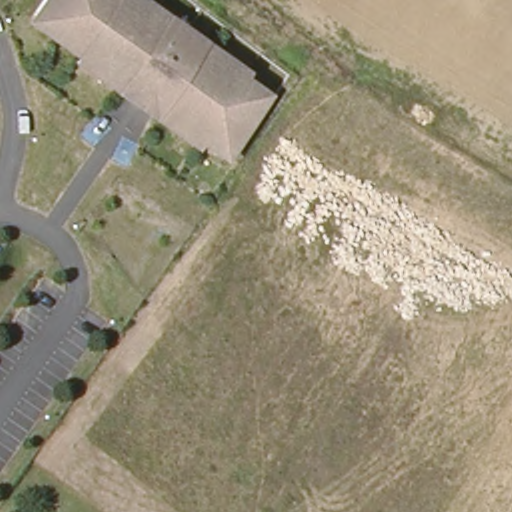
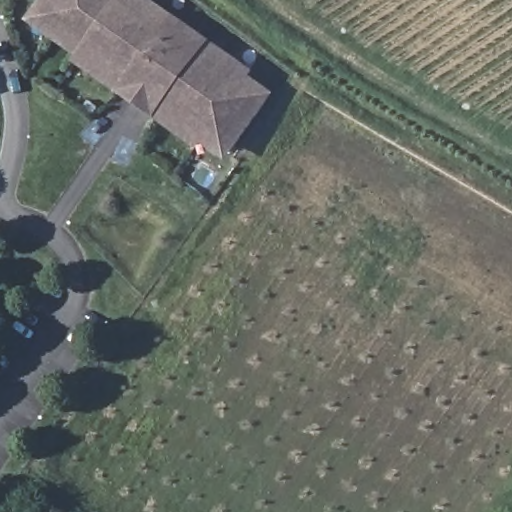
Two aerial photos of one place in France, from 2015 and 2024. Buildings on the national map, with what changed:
unchanged [(39,0),(154,0),(253,69),(249,75),(273,92),(225,161),(200,144),(196,149),(71,60),(75,55),(26,20),(39,0)]

